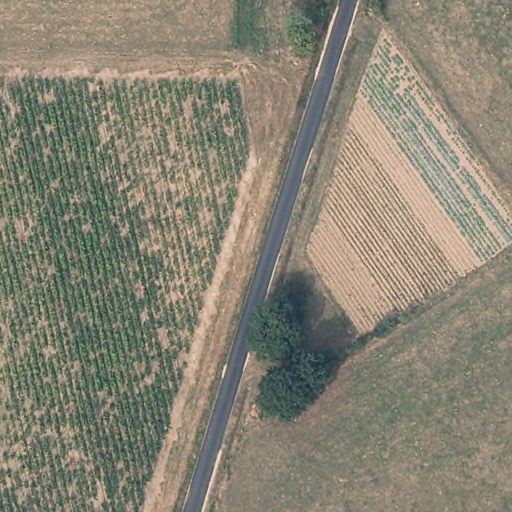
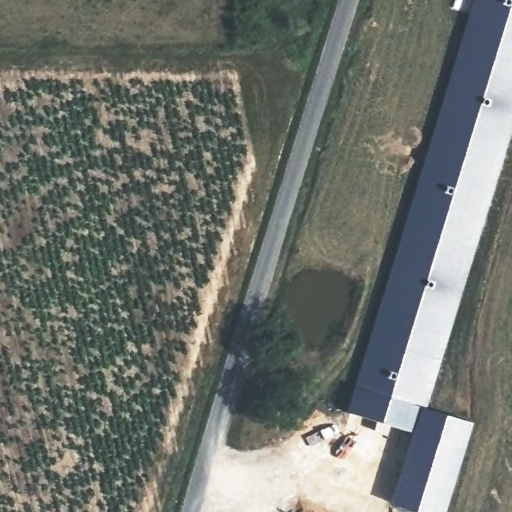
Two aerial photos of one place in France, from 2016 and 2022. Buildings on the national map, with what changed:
new [(474,421),(443,512),(422,512),(391,502),(412,431),(347,410),(355,385),(474,0),(512,0),(512,128),(426,407),(474,421)]

